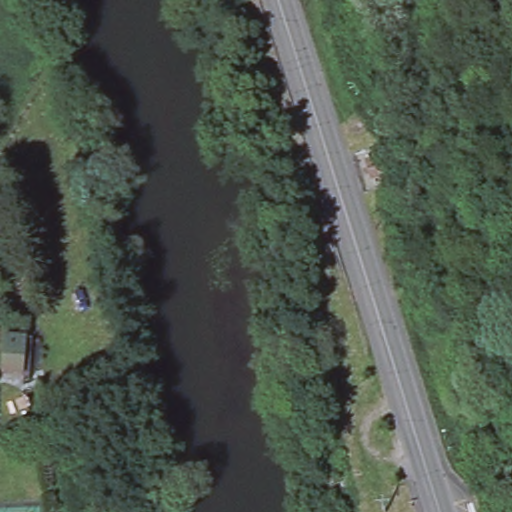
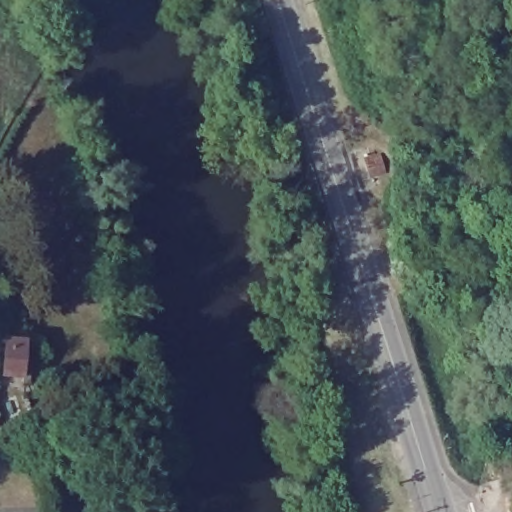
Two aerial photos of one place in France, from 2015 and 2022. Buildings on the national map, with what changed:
unchanged [(381,155),(385,172),(371,175),(367,159),(381,155)]
unchanged [(26,339),(24,374),(3,373),(5,339),(26,339)]

